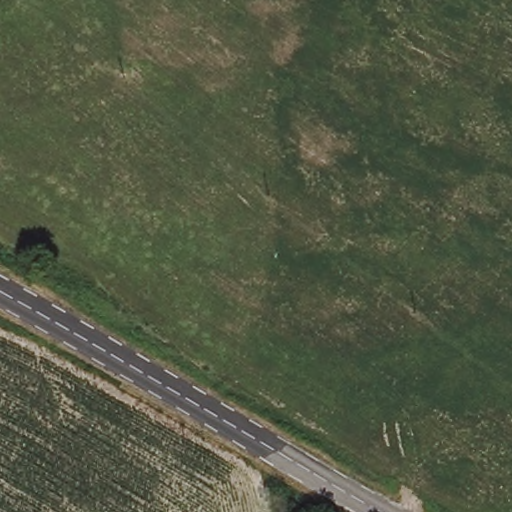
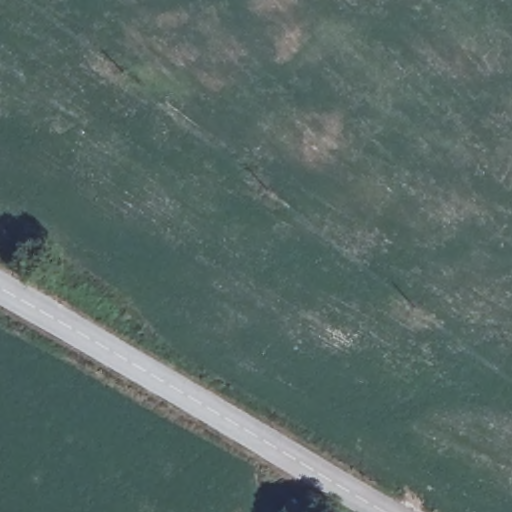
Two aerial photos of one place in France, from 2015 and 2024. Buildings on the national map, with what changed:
[]

